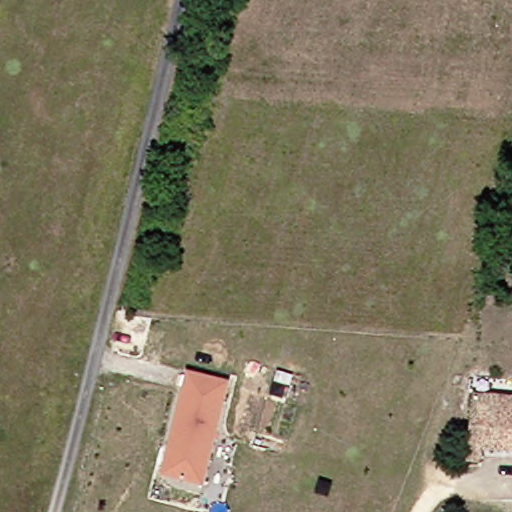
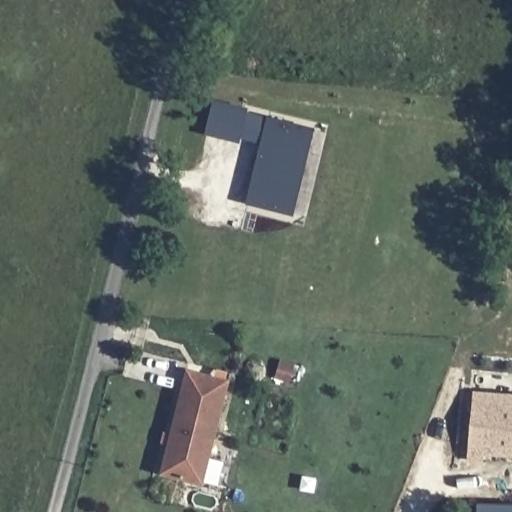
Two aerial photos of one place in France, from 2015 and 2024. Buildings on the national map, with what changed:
new [(314,128),(293,216),(246,204),(260,143),(240,139),(240,143),(205,136),(213,100),(248,108),(247,112),(267,117),(314,128)]
unchanged [(232,380),(194,482),(154,466),(191,366),(232,380)]
unchanged [(512,397),(512,450),(478,446),(477,459),(467,457),(472,393),(512,397)]
new [(477,504),(512,504),(512,512),(477,512),(477,504)]

